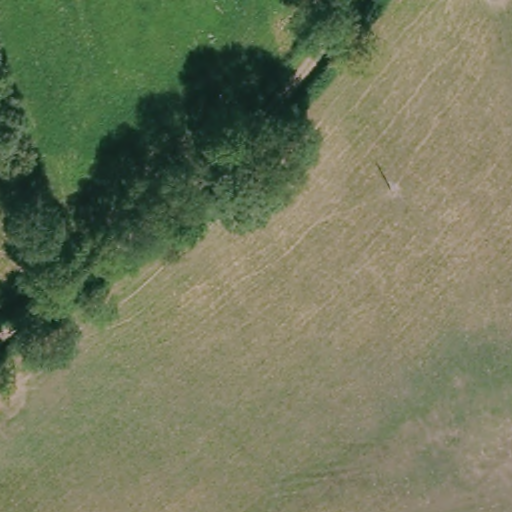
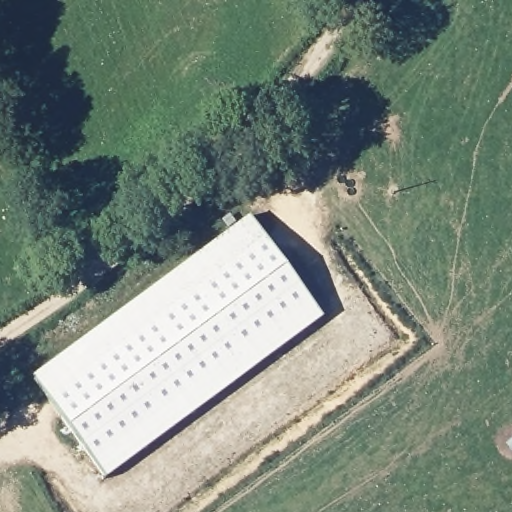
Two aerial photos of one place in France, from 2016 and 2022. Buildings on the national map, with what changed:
new [(321,334),(92,477),(28,375),(257,231),(321,334)]

